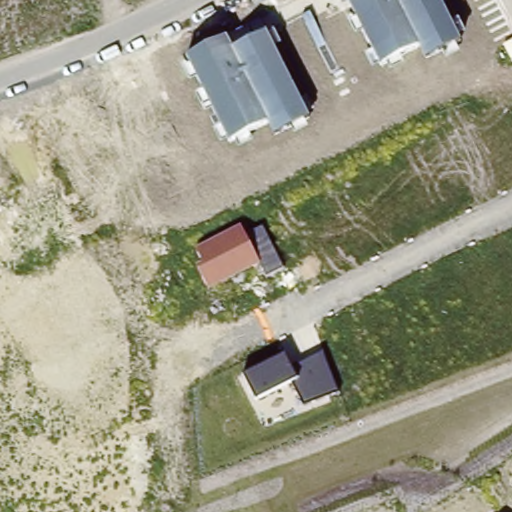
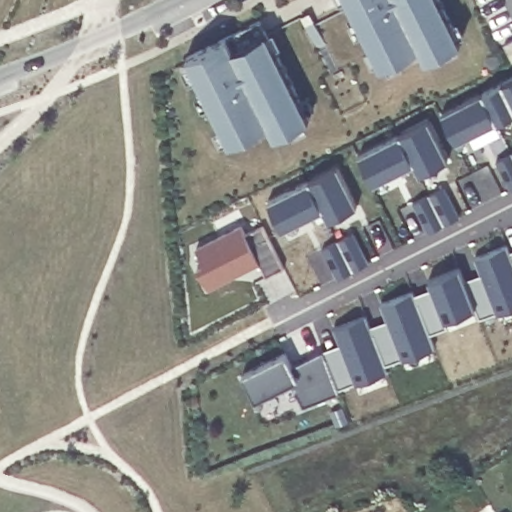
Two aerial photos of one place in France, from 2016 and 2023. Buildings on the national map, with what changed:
unchanged [(347,0),(439,0),(460,44),(428,60),(420,44),(380,64),(347,0)]
new [(307,12),(336,70),(328,74),(300,17),(307,12)]
unchanged [(186,57),(225,37),(233,50),(268,33),(310,118),(276,137),(268,122),(230,144),(186,57)]
new [(456,143),(441,114),(482,92),(512,78),(512,115),(497,122),(456,143)]
new [(420,175),(415,163),(373,185),(359,156),(430,120),(449,160),(420,175)]
new [(328,220),(325,211),(280,232),(267,201),(338,167),(357,205),(328,220)]
unchanged [(197,266),(203,262),(196,250),(240,227),(245,238),(263,229),(283,269),(266,277),(260,265),(208,288),(197,266)]
new [(476,310),(446,321),(448,328),(430,334),(435,349),(385,365),(387,374),(340,393),(325,357),(343,352),(333,327),(368,315),(373,334),(390,328),(381,304),(413,292),(416,302),(435,296),(429,280),(461,268),(467,288),(484,282),(475,257),(508,246),(512,254),(512,309),(480,320),(476,310)]
unchanged [(243,375),(285,355),(295,371),(323,355),(340,393),(303,410),(291,383),(255,399),(243,375)]

